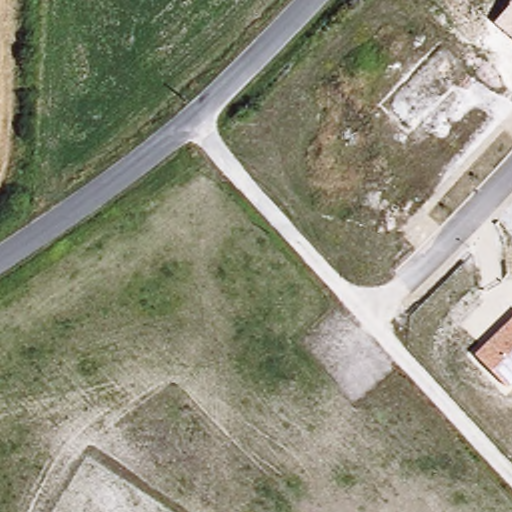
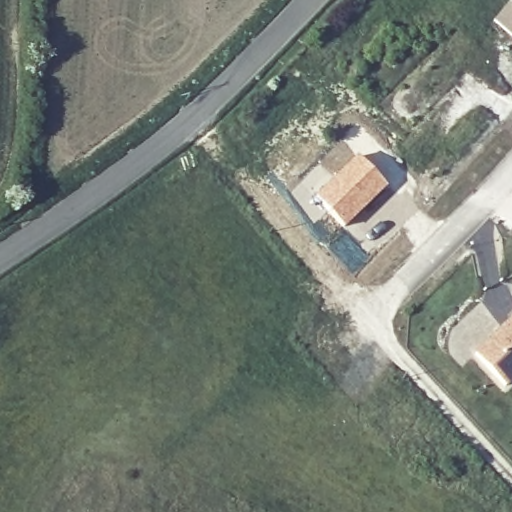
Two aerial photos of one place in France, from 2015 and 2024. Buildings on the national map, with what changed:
unchanged [(493,23),(512,0),(512,38),(493,23)]
new [(332,177),(319,163),(341,141),(386,185),(345,228),(314,195),(332,177)]
unchanged [(507,388),(473,354),(512,318),(512,383),(507,388)]

